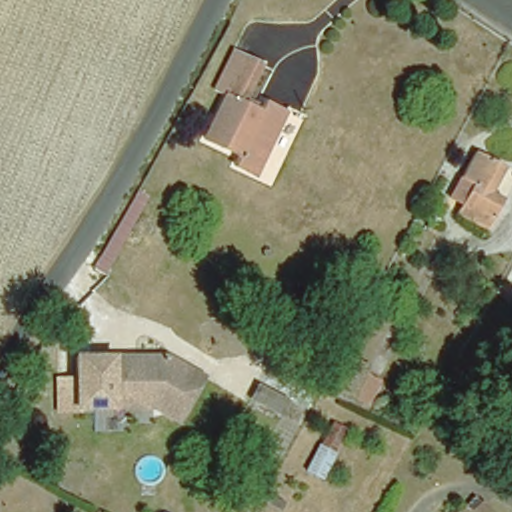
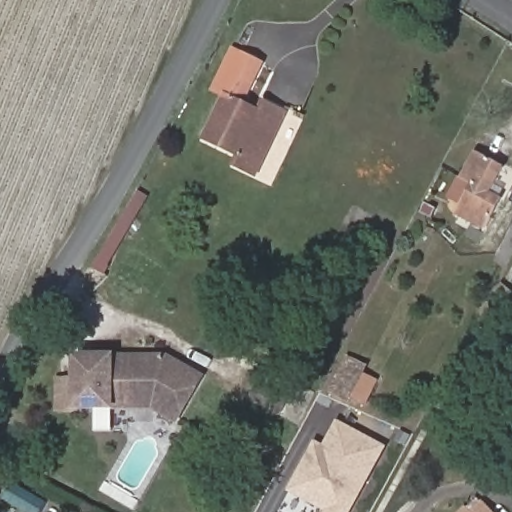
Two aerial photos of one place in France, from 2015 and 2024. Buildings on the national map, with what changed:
unchanged [(243,96),(261,105),(266,96),(285,105),(252,170),(235,161),(240,151),(205,134),(227,88),(215,81),(232,46),(247,53),(261,60),(243,96)]
unchanged [(459,175),(476,146),(502,162),(490,186),(502,193),(483,225),(456,209),(460,201),(448,194),(459,175)]
unchanged [(167,357),(203,376),(181,419),(159,408),(81,414),(77,364),(167,357)]
unchanged [(367,372),(363,379),(376,386),(366,408),(351,401),(348,407),(330,398),(347,362),(367,372)]
unchanged [(288,401),(280,416),(248,399),(257,383),(288,401)]
new [(324,512),(287,491),(313,442),(322,447),(337,420),(387,447),(352,512),(324,512)]
demolished [(345,429),(320,479),(306,472),(331,422),(345,429)]
demolished [(262,500),(270,485),(287,496),(279,510),(262,500)]
unchanged [(471,506),(482,494),(485,498),(497,511),(498,512),(455,512),(466,501),(471,506)]

